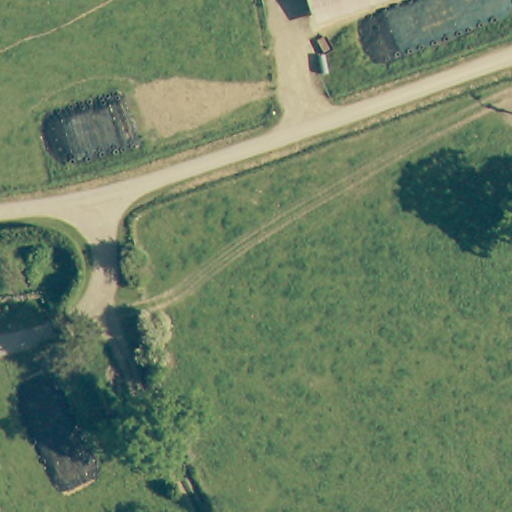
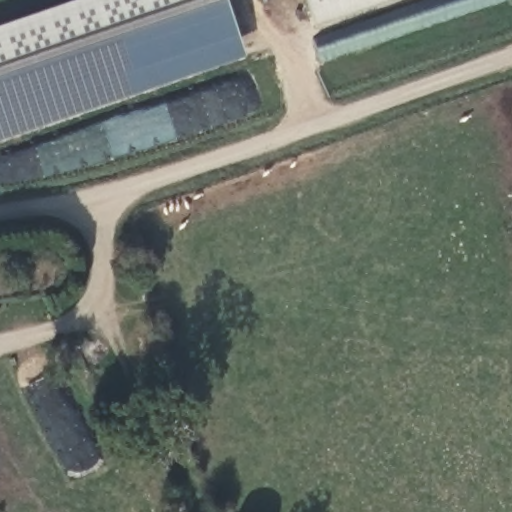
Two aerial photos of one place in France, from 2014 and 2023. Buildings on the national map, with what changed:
new [(0,142),(0,28),(81,0),(228,0),(247,57),(0,142)]
unchanged [(342,0),(307,12),(303,0),(342,0)]

